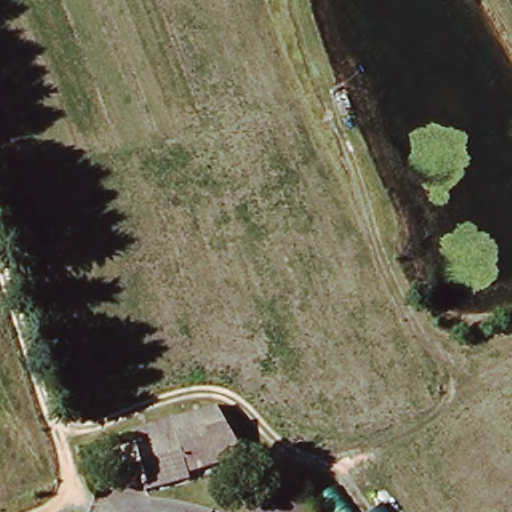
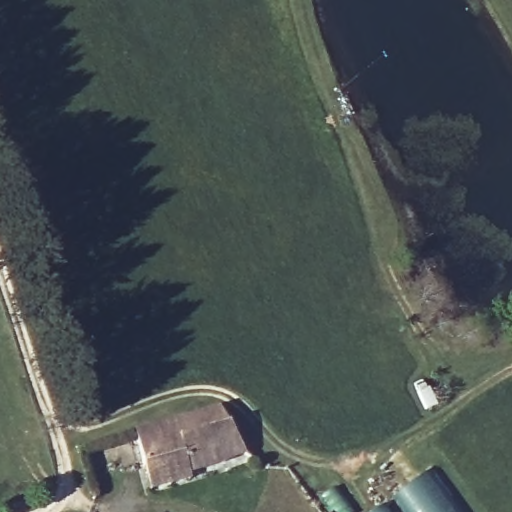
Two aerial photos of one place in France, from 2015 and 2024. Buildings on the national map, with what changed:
unchanged [(143,430),(224,406),(255,452),(201,471),(195,452),(153,464),(143,430)]
unchanged [(195,452),(201,471),(203,477),(161,490),(153,464),(195,452)]
new [(398,496),(426,475),(431,482),(436,478),(458,510),(456,512),(411,512),(398,496)]
unchanged [(384,504),(390,512),(374,512),(384,504)]

